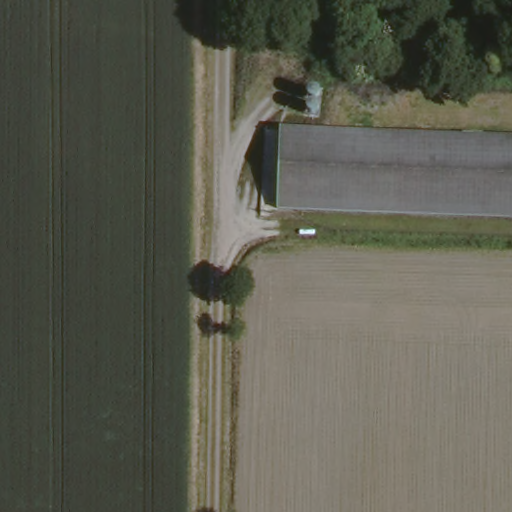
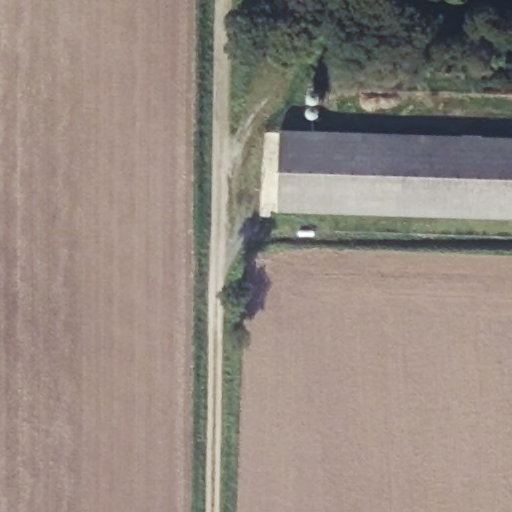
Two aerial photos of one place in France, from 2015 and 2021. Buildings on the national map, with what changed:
unchanged [(512,141),(512,222),(273,219),(274,136),(512,141)]

